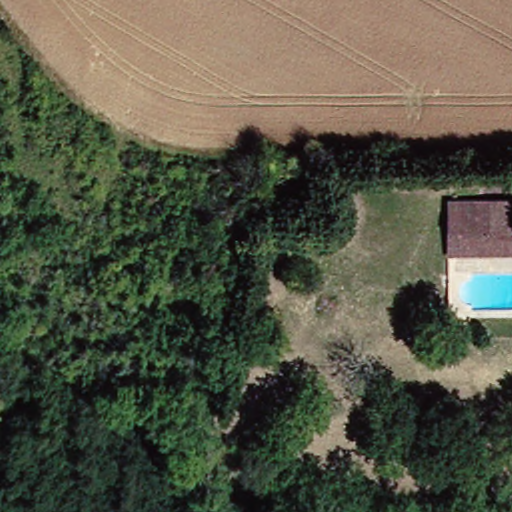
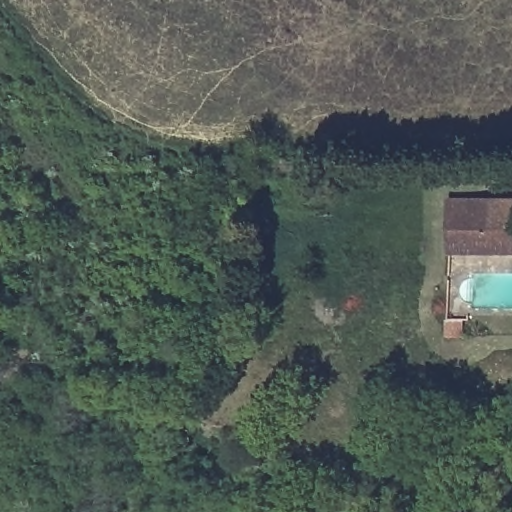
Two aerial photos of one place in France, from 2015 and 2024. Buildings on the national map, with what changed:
unchanged [(512,198),(512,253),(452,252),(453,199),(512,198)]

